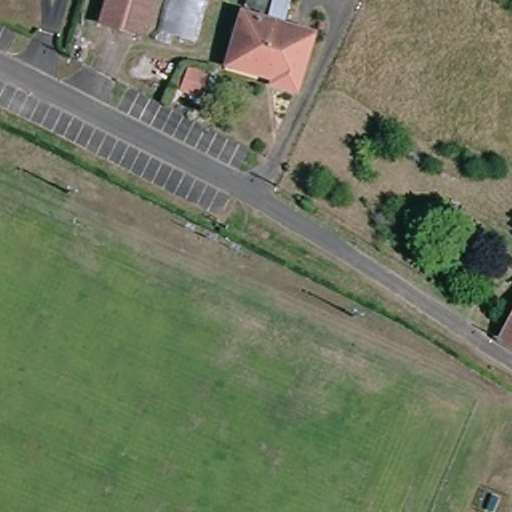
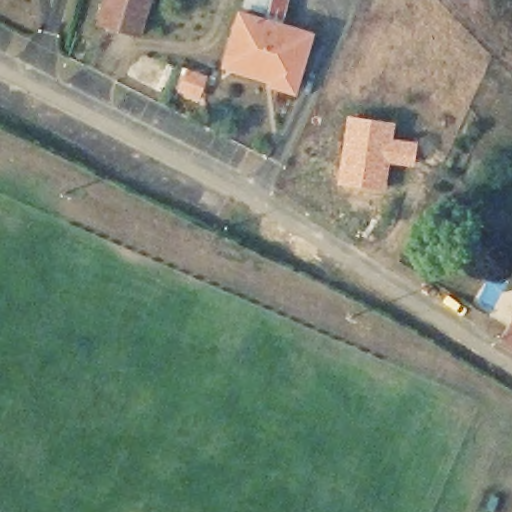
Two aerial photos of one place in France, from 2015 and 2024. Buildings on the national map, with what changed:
unchanged [(100,24),(107,0),(147,0),(136,35),(100,24)]
demolished [(194,45),(156,32),(167,0),(208,0),(194,45)]
unchanged [(232,57),(244,16),(267,23),(274,0),(285,0),(293,2),(286,30),(313,38),(297,91),(275,85),(276,80),(229,66),(232,57)]
new [(346,114),(396,122),(394,137),(418,141),(414,167),(390,164),(385,193),(336,185),(346,114)]
unchanged [(508,327),(512,320),(512,346),(501,340),(508,327)]

